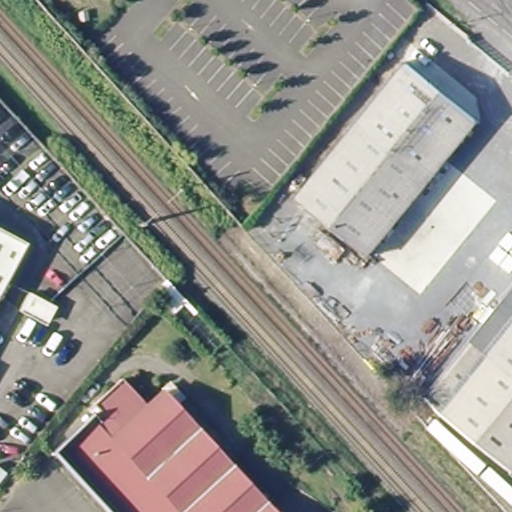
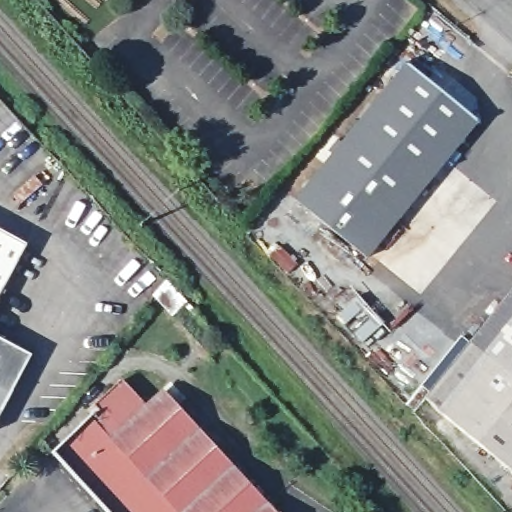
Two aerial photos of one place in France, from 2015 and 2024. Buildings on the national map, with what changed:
unchanged [(372,256),(302,199),(410,63),(479,121),(372,256)]
unchanged [(31,240),(0,302),(0,224),(31,240)]
unchanged [(428,401),(477,339),(512,296),(512,471),(511,472),(428,401)]
new [(30,356),(0,412),(0,339),(30,356)]
unchanged [(58,452),(95,419),(100,426),(108,418),(99,408),(125,384),(151,411),(167,397),(269,512),(111,512),(58,452)]

